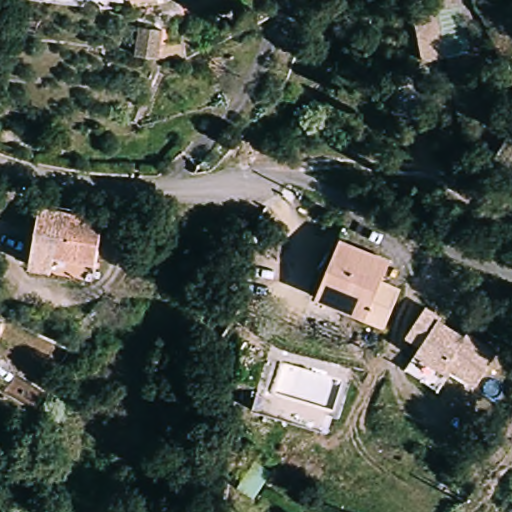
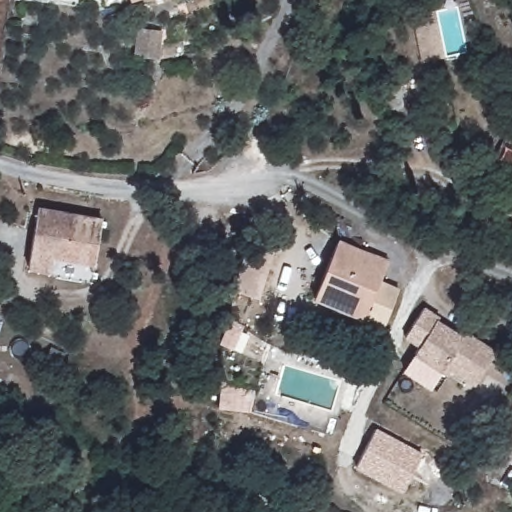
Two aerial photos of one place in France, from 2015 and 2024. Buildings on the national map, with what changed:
unchanged [(20,1),(13,0),(20,0),(20,1)]
unchanged [(135,1),(135,0),(138,0),(135,1)]
unchanged [(441,6),(455,50),(435,57),(420,13),(441,6)]
unchanged [(138,32),(170,35),(167,64),(136,60),(138,32)]
unchanged [(33,212),(107,226),(99,266),(52,258),(48,272),(22,267),(33,212)]
unchanged [(339,243),(390,263),(382,282),(401,289),(386,327),(317,300),(339,243)]
new [(249,246),(273,252),(260,297),(237,290),(249,246)]
unchanged [(494,351),(473,387),(450,372),(446,376),(441,372),(413,356),(418,347),(402,338),(423,307),(440,317),(440,321),(461,336),(463,331),(494,351)]
new [(402,495),(355,468),(377,428),(425,455),(402,495)]

